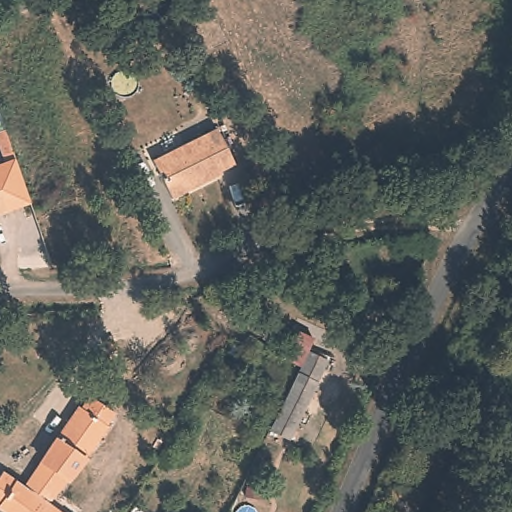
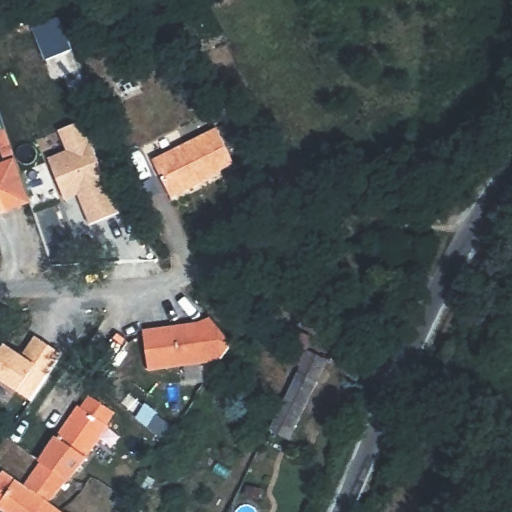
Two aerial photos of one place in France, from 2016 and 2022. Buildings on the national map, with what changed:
new [(66,151),(58,131),(85,121),(122,215),(90,227),(78,196),(65,201),(47,159),(66,151)]
unchanged [(228,172),(179,198),(160,158),(224,125),(242,161),(226,169),(228,172)]
unchanged [(0,192),(0,164),(4,162),(0,154),(0,134),(5,132),(31,204),(7,209),(0,192)]
unchanged [(7,209),(0,212),(0,192),(7,209)]
new [(143,331),(198,323),(211,318),(235,343),(222,361),(202,366),(204,385),(187,387),(185,367),(148,373),(143,331)]
new [(5,345),(24,357),(36,337),(62,355),(31,402),(0,382),(0,351),(5,345)]
unchanged [(292,435),(271,425),(297,361),(305,344),(326,353),(292,435)]
unchanged [(83,392),(87,387),(107,402),(99,415),(109,421),(92,443),(67,472),(41,452),(83,392)]
unchanged [(47,498),(40,493),(21,480),(41,452),(67,472),(47,498)]
unchanged [(0,504),(0,465),(21,480),(40,493),(26,512),(11,512),(0,504)]
unchanged [(66,512),(26,512),(40,493),(47,498),(66,512)]
unchanged [(70,510),(72,512),(67,512),(70,510)]

